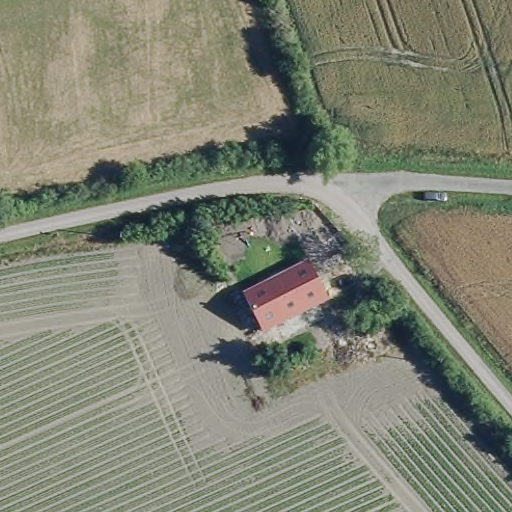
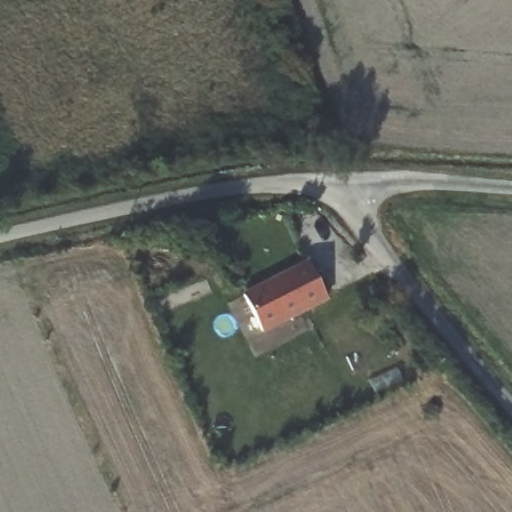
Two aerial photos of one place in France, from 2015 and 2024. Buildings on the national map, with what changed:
unchanged [(348,284),(264,329),(252,304),(334,260),(348,284)]
unchanged [(293,355),(281,361),(269,338),(281,332),(293,355)]

